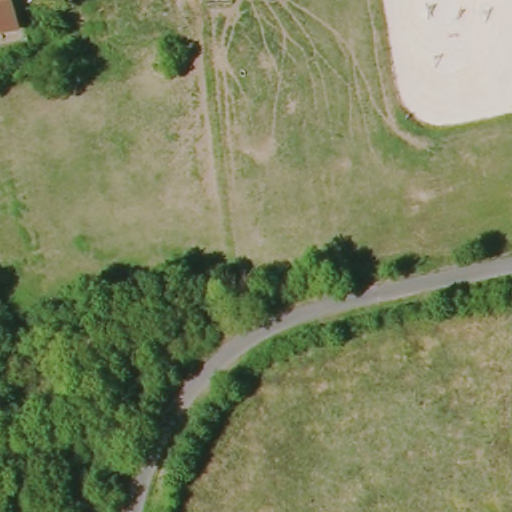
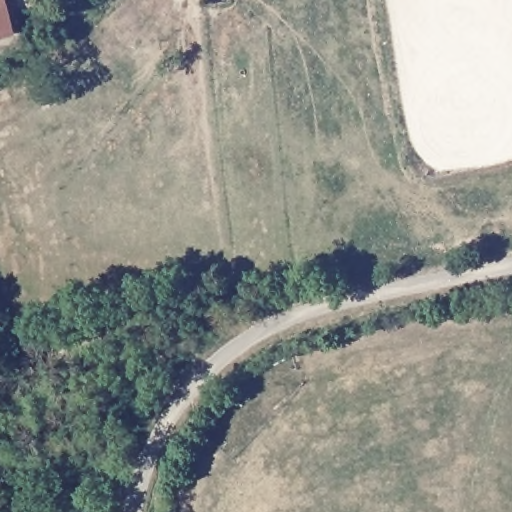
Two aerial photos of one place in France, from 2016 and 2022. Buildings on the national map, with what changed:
unchanged [(5,0),(11,25),(0,29),(0,0),(5,0)]

